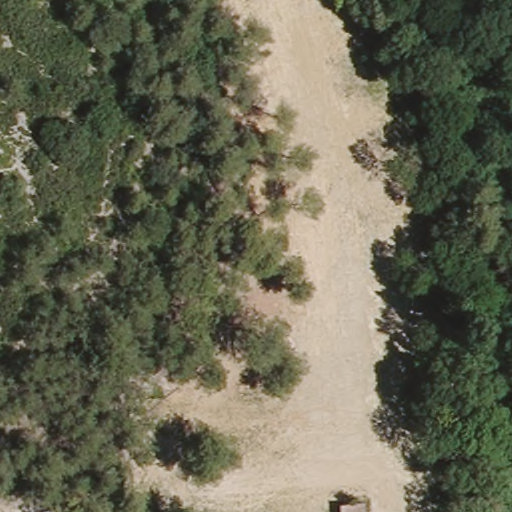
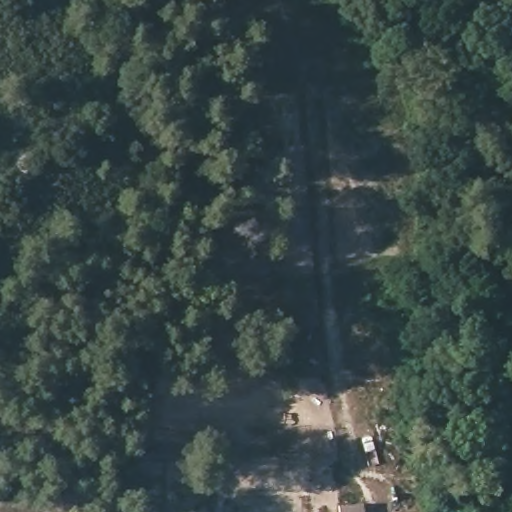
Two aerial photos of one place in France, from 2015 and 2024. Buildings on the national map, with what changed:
unchanged [(364,506),(365,512),(341,512),(341,509),(364,506)]

